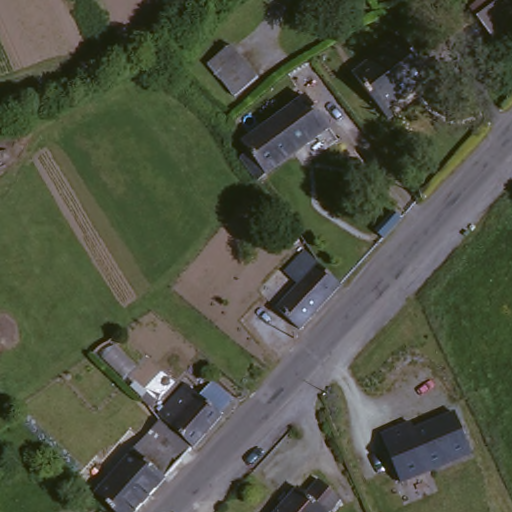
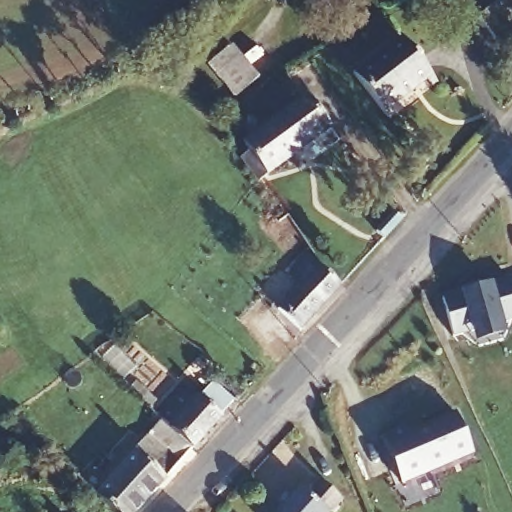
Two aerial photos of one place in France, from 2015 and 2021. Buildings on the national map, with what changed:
unchanged [(512,0),(512,38),(499,47),(471,10),(485,0),(497,0),(500,4),(505,0),(512,0)]
unchanged [(395,122),(355,79),(400,37),(440,82),(435,86),(429,79),(393,112),(400,119),(395,122)]
unchanged [(258,79),(235,100),(205,67),(228,45),(258,79)]
unchanged [(269,175),(246,142),(308,97),(329,126),(331,130),(269,175)]
unchanged [(397,214),(402,218),(384,238),(378,231),(397,214)]
unchanged [(302,329),(281,308),(306,282),(293,270),(309,252),(321,268),(341,286),(302,329)]
new [(507,335),(475,343),(470,327),(454,333),(443,293),(511,274),(512,278),(512,318),(502,320),(507,335)]
unchanged [(241,397),(200,443),(165,411),(205,367),(241,397)]
unchanged [(383,431),(413,417),(416,424),(457,408),(476,453),(406,482),(383,431)]
unchanged [(158,427),(166,419),(197,446),(189,456),(138,512),(127,512),(101,488),(158,427)]
unchanged [(303,487),(309,492),(318,481),(341,500),(331,512),(282,512),(303,487)]
unchanged [(78,511),(79,512),(77,512),(78,511)]

